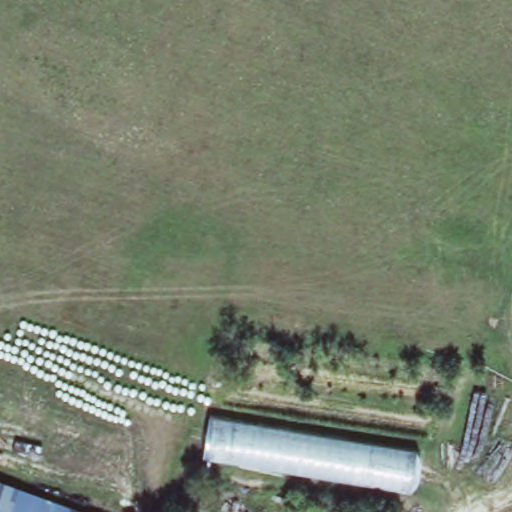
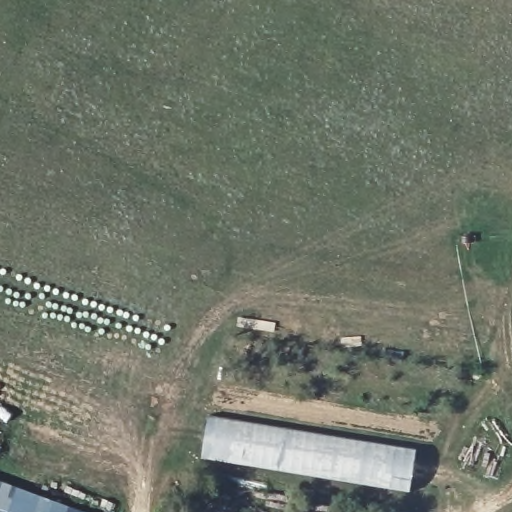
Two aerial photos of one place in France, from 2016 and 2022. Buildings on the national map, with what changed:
unchanged [(420,446),(415,493),(204,461),(212,415),(420,446)]
unchanged [(0,512),(0,481),(85,512),(0,512)]

